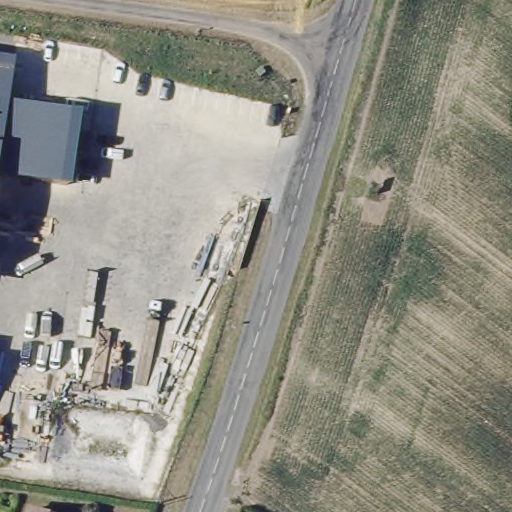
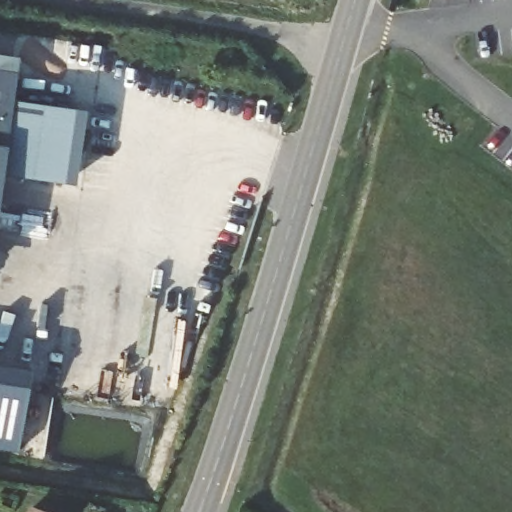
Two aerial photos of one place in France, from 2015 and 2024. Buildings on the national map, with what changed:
unchanged [(12,104),(85,114),(74,188),(1,176),(0,183),(0,58),(18,60),(12,104)]
new [(19,453),(0,451),(0,367),(31,371),(19,453)]

